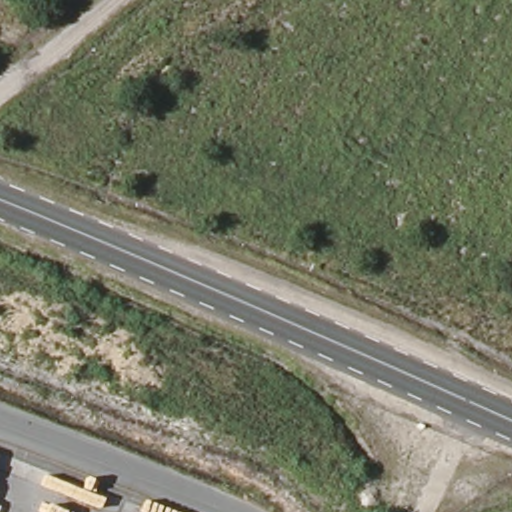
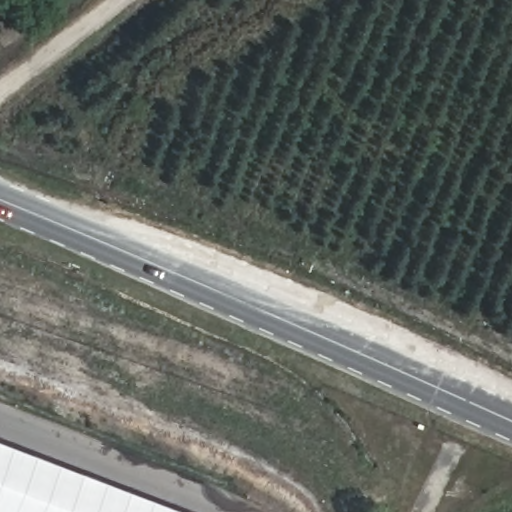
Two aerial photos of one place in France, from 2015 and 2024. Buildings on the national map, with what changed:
new [(192,512),(0,512),(0,441),(192,512)]

